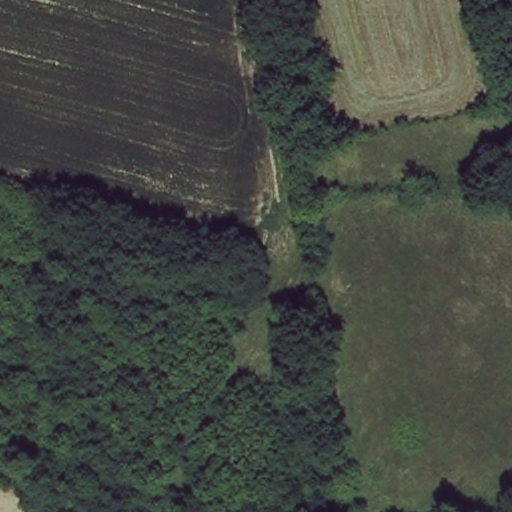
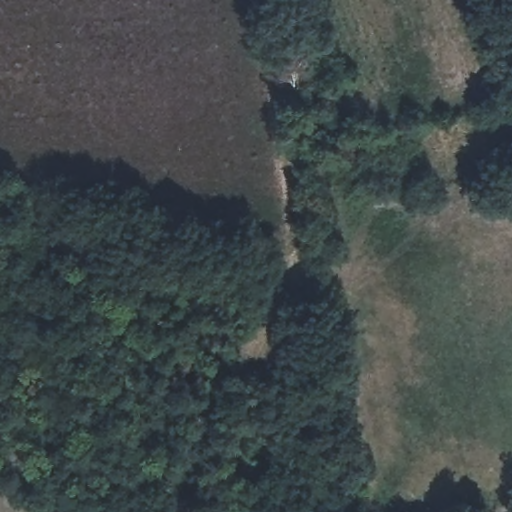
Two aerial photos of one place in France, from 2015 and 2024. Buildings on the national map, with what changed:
[]

